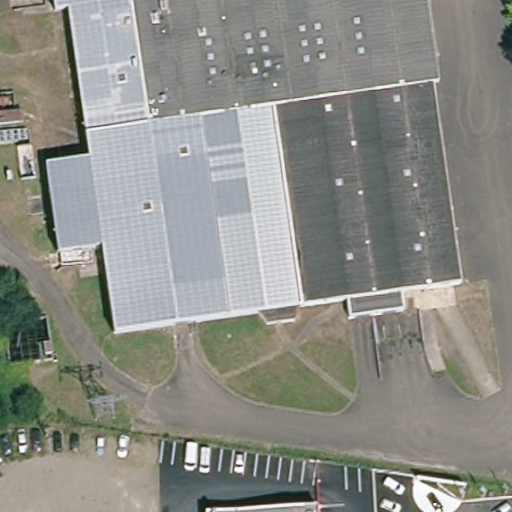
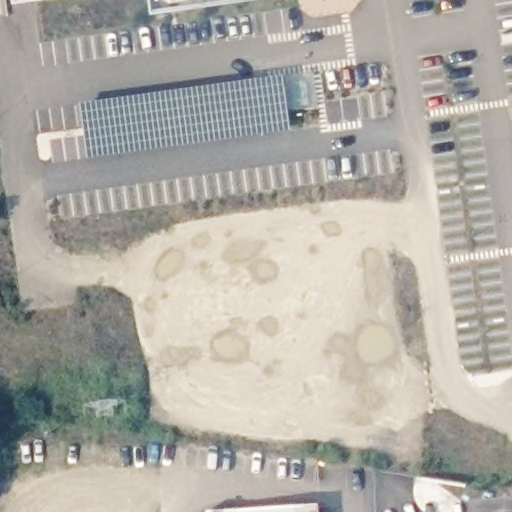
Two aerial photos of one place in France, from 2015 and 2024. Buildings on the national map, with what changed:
new [(14,0),(21,0),(14,1),(14,0)]
demolished [(432,90),(460,290),(402,298),(404,316),(350,323),(348,305),(303,311),(294,327),(269,329),(260,318),(114,333),(104,247),(94,247),(60,252),(51,165),(83,160),(95,159),(78,11),(66,11),(57,14),(55,0),(428,0),(440,88),(432,90)]
new [(150,0),(230,0),(152,11),(150,0)]
unchanged [(311,498),(312,512),(201,512),(201,504),(311,498)]

